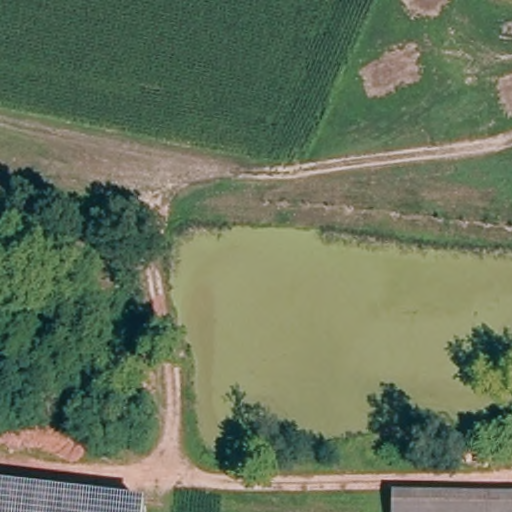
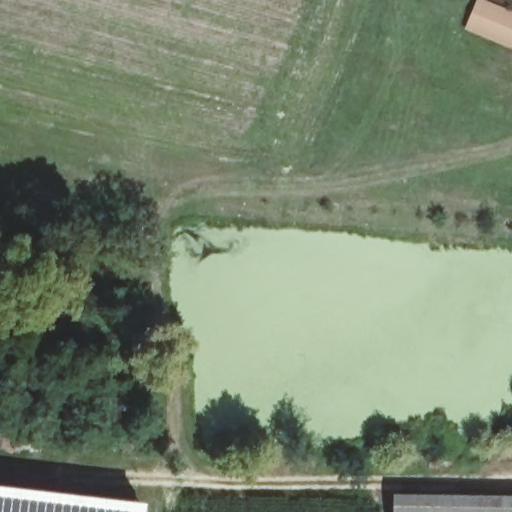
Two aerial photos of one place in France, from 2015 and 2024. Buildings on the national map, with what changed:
new [(487,0),(512,10),(512,50),(463,30),(476,0),(487,0)]
unchanged [(147,512),(0,512),(0,486),(148,502),(147,512)]
unchanged [(387,501),(472,502),(471,512),(386,512),(387,501)]
unchanged [(512,502),(512,512),(471,512),(472,502),(512,502)]

